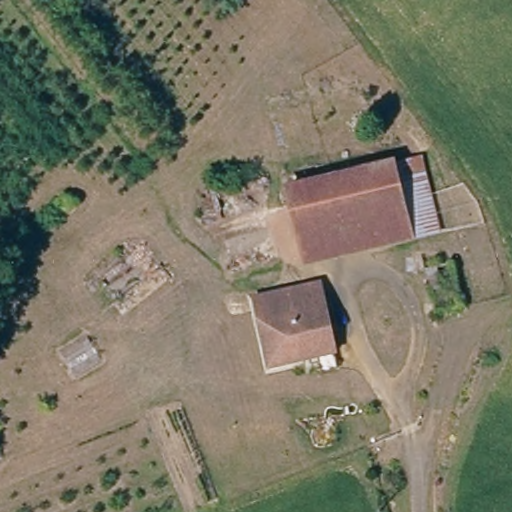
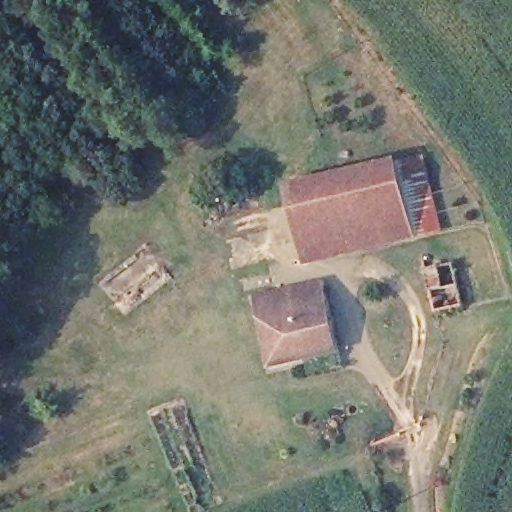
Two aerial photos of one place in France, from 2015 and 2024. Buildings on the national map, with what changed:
unchanged [(405,161),(424,204),(425,223),(323,257),(302,189),(396,158),(405,161)]
unchanged [(466,299),(433,308),(425,269),(449,262),(466,299)]
unchanged [(253,305),(314,285),(316,284),(336,353),(278,369),(274,368),(253,305)]

